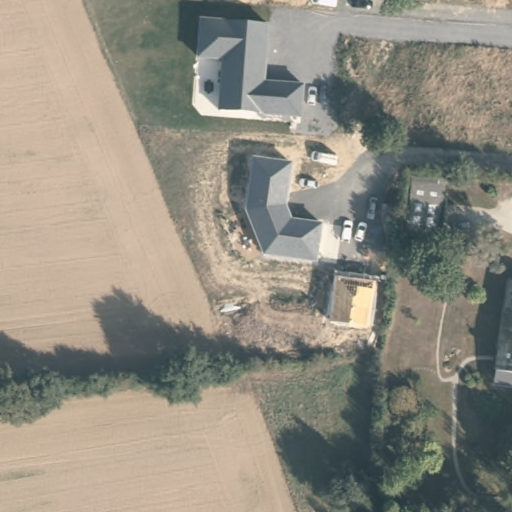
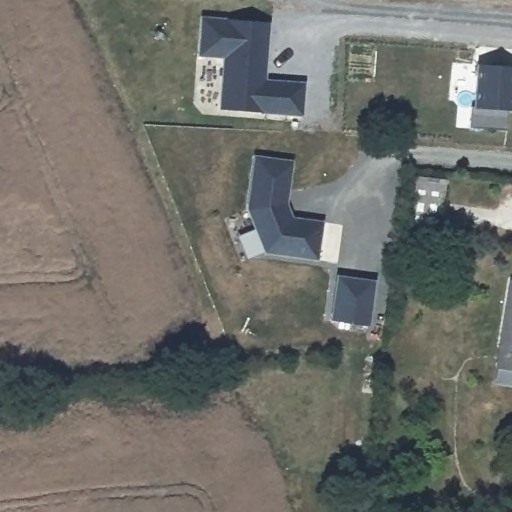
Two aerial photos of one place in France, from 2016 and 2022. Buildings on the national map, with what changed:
unchanged [(302,117),(217,109),(221,59),(196,57),(201,19),(268,23),(264,80),(303,82),(302,117)]
new [(503,131),(464,127),(467,104),(472,104),(475,65),(512,66),(512,110),(504,111),(503,131)]
unchanged [(287,207),(291,220),(322,222),(316,262),(260,254),(243,209),(255,157),(292,160),(287,207)]
unchanged [(444,187),(439,232),(406,229),(410,185),(444,187)]
unchanged [(370,327),(330,320),(338,277),(375,281),(370,327)]
unchanged [(512,277),(512,343),(498,343),(507,277),(512,277)]
unchanged [(511,370),(512,370),(512,387),(499,387),(499,370),(497,370),(498,343),(512,343),(511,370)]
unchanged [(512,343),(512,370),(511,370),(512,343)]

